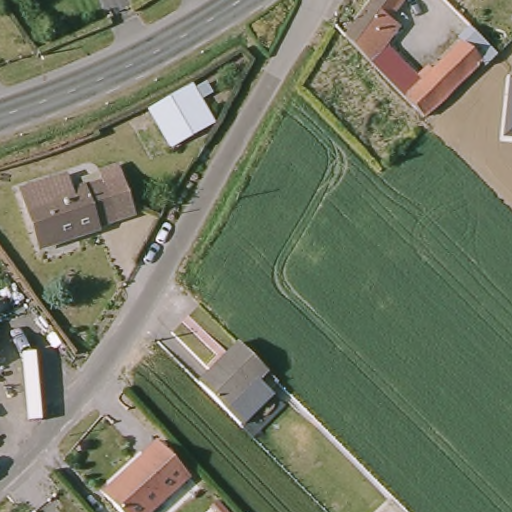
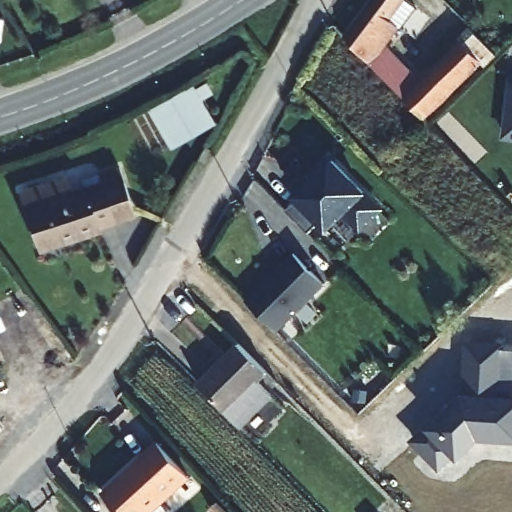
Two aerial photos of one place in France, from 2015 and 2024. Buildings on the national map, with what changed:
unchanged [(433,77),(462,48),(458,44),(470,33),(497,61),(487,70),(485,72),(480,67),(423,124),(393,92),(392,92),(346,44),(378,0),(400,0),(404,3),(388,25),(398,32),(385,50),(417,83),(428,72),(433,77)]
unchanged [(504,138),(510,78),(512,79),(512,139),(504,138)]
unchanged [(216,124),(171,149),(149,110),(193,84),(216,124)]
new [(296,195),(310,181),(309,179),(315,170),(318,173),(332,159),(380,208),(360,228),(344,211),(328,227),(321,220),(309,232),(286,209),(298,197),(296,195)]
unchanged [(97,233),(97,235),(76,242),(75,240),(39,252),(21,196),(68,181),(73,196),(101,187),(99,178),(119,172),(135,220),(97,233)]
new [(297,255),(327,285),(279,334),(248,303),(297,255)]
new [(506,348),(512,349),(512,442),(479,440),(459,461),(455,457),(440,472),(410,441),(427,427),(463,396),(466,343),(506,343),(506,348)]
unchanged [(227,412),(199,384),(239,344),(267,372),(227,412)]
unchanged [(150,512),(119,512),(104,495),(145,458),(144,456),(158,443),(189,476),(150,512)]

